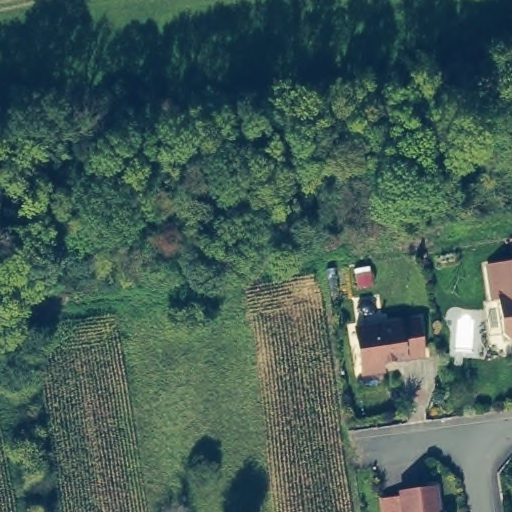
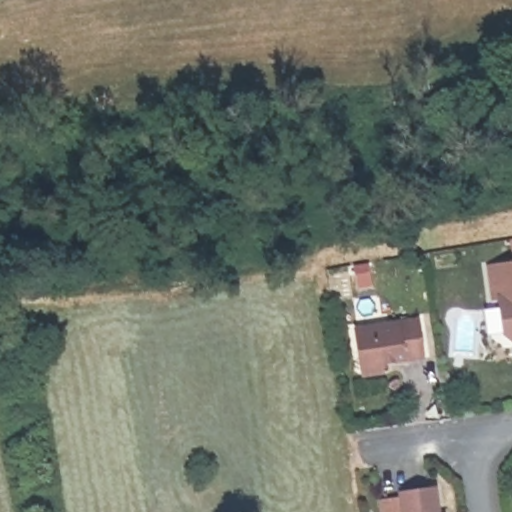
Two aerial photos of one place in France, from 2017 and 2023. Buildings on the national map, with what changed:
unchanged [(502,333),(497,298),(492,298),(487,264),(512,260),(512,340),(509,339),(502,333)]
unchanged [(381,371),(360,374),(353,327),(417,318),(422,356),(380,362),(381,371)]
unchanged [(400,512),(397,493),(432,488),(436,512),(400,512)]

